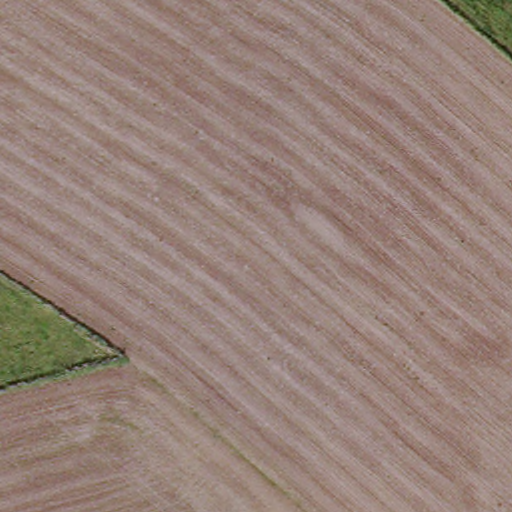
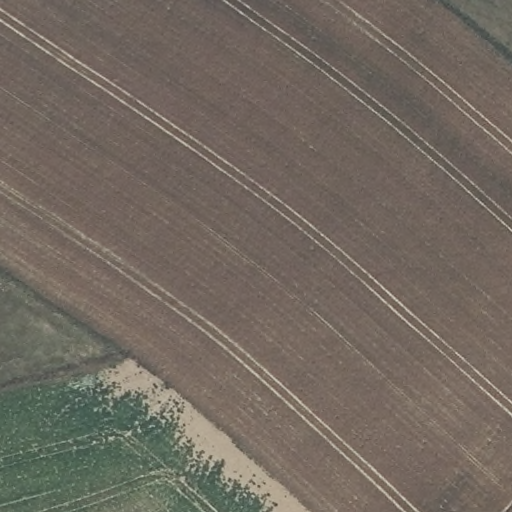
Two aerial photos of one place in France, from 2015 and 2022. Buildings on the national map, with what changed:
[]

